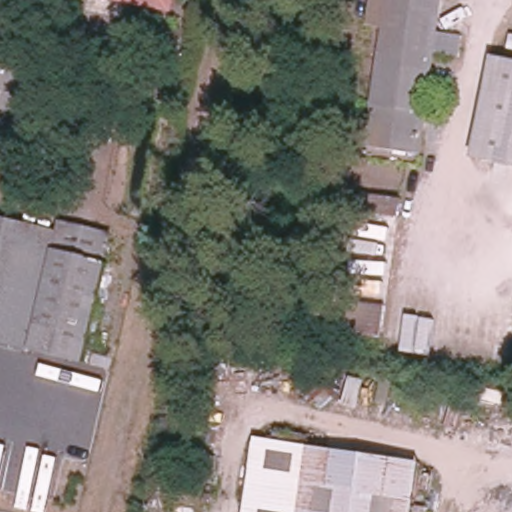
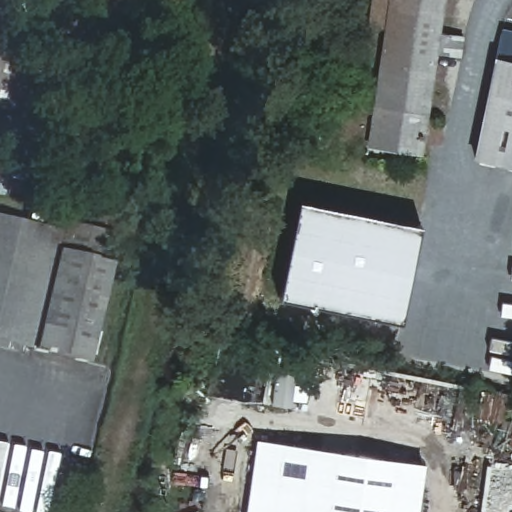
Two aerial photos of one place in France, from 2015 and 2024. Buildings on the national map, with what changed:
unchanged [(9,30),(0,71),(0,0),(15,0),(9,30)]
unchanged [(171,8),(129,0),(172,0),(171,8)]
unchanged [(417,154),(362,146),(383,0),(437,0),(433,33),(458,36),(456,56),(430,53),(417,154)]
unchanged [(17,110),(0,106),(0,71),(9,30),(33,34),(19,108),(17,110)]
unchanged [(474,157),(495,56),(512,60),(512,165),(474,157)]
unchanged [(0,214),(0,182),(26,188),(19,218),(0,214)]
demolished [(377,335),(338,330),(358,194),(397,199),(377,335)]
new [(280,296),(298,200),(418,224),(400,320),(280,296)]
unchanged [(0,347),(0,224),(51,236),(47,255),(24,352),(0,347)]
unchanged [(102,267),(79,365),(27,353),(24,352),(47,255),(102,267)]
new [(272,405),(276,369),(297,371),(295,384),(306,386),(304,401),(292,401),(292,406),(272,405)]
unchanged [(245,512),(257,437),(422,462),(415,512),(245,512)]

